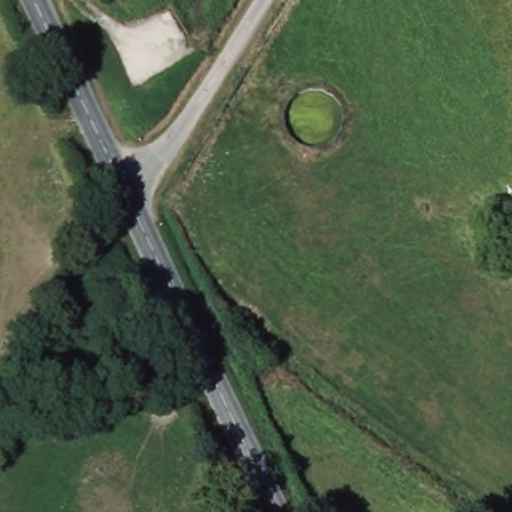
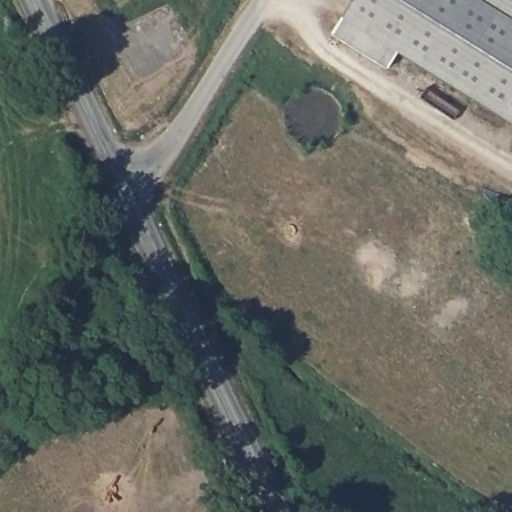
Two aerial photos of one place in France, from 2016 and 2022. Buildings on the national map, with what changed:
new [(512,125),(396,55),(386,71),(330,37),(352,0),(512,0),(512,125)]

